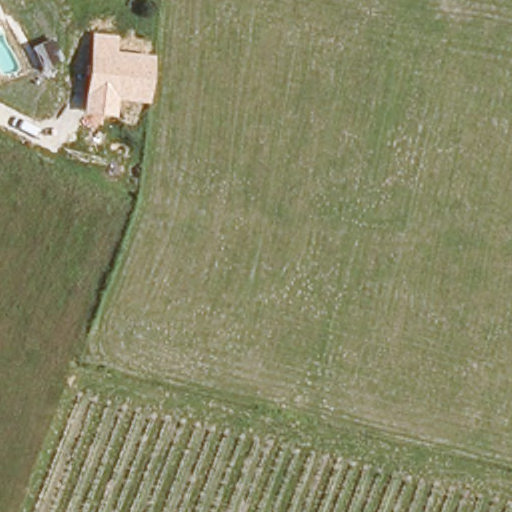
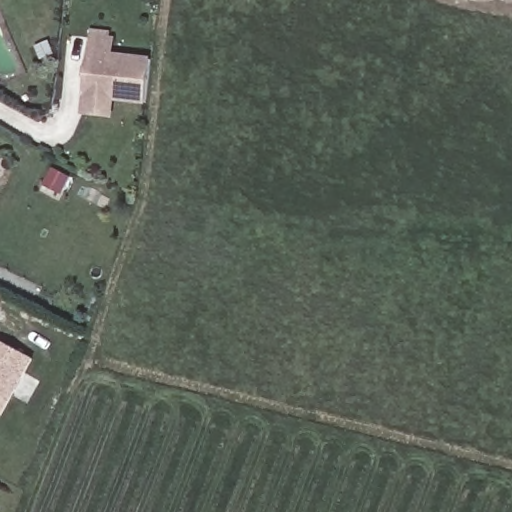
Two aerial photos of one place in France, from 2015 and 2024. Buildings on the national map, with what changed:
unchanged [(152,56),(147,104),(114,101),(113,119),(81,115),(90,34),(116,36),(114,53),(152,56)]
new [(0,415),(0,340),(34,359),(3,417),(0,415)]

